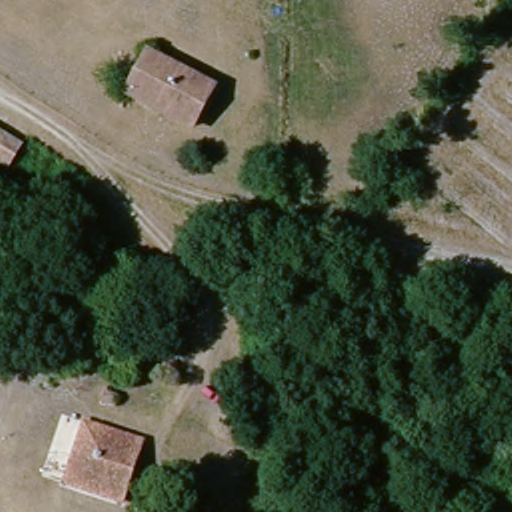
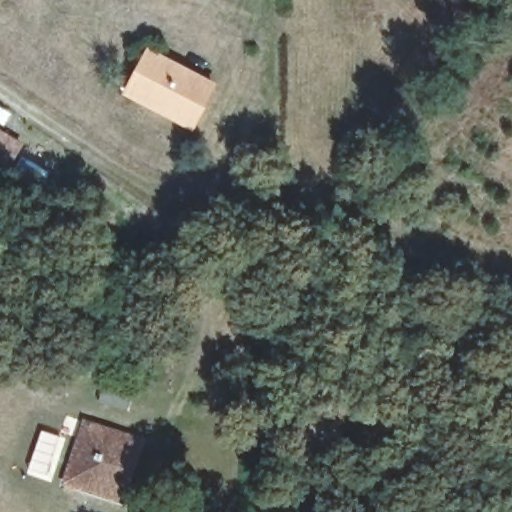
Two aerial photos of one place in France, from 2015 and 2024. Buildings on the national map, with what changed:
unchanged [(200,126),(131,97),(151,55),(219,85),(200,126)]
unchanged [(22,145),(22,147),(32,152),(26,167),(14,162),(10,170),(0,164),(0,130),(22,145)]
unchanged [(141,441),(125,501),(68,485),(84,423),(141,441)]

